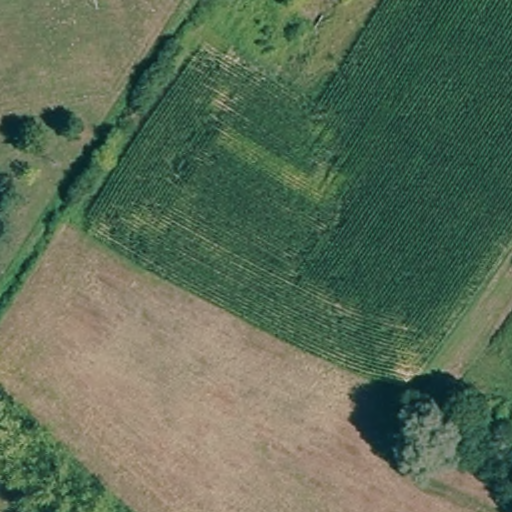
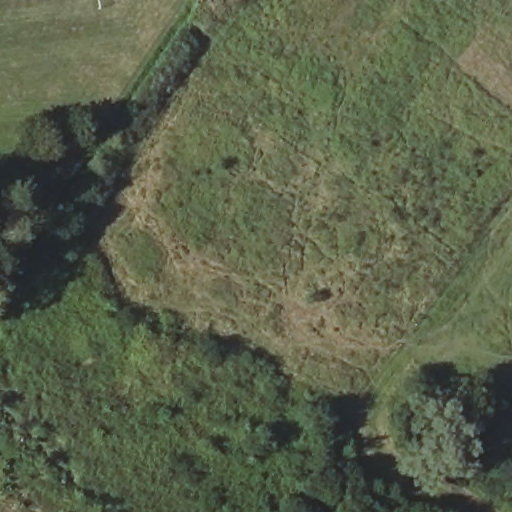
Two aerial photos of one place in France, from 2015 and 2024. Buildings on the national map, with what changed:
unchanged [(410,437),(399,452),(379,439),(389,424),(410,437)]

